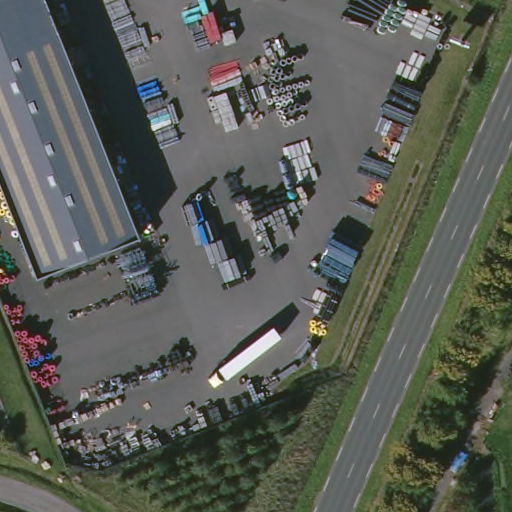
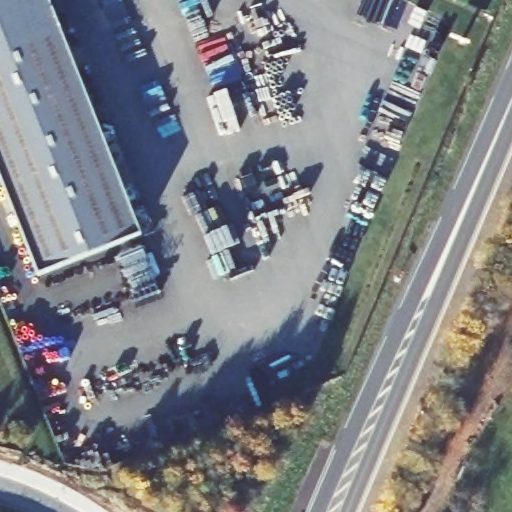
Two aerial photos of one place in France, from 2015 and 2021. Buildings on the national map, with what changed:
unchanged [(0,163),(0,0),(53,0),(145,229),(42,270),(0,163)]

